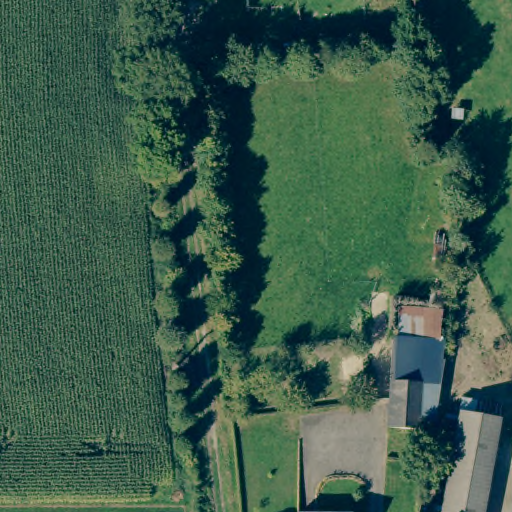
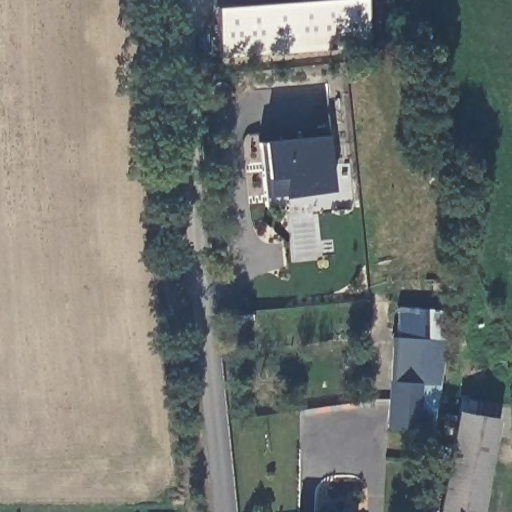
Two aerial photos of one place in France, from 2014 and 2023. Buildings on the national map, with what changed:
new [(367,0),(367,47),(220,59),(216,8),(326,0),(367,0)]
new [(302,137),(300,130),(327,129),(327,136),(332,191),(285,200),(282,180),(266,181),(262,142),(302,137)]
unchanged [(389,381),(392,304),(423,306),(422,335),(446,337),(432,432),(416,430),(420,384),(389,381)]
unchanged [(420,384),(416,430),(386,427),(389,381),(420,384)]
unchanged [(456,429),(442,427),(445,413),(458,417),(459,414),(461,398),(500,406),(497,422),(480,512),(441,512),(456,429)]
unchanged [(344,512),(295,512),(295,509),(344,511),(344,512)]

